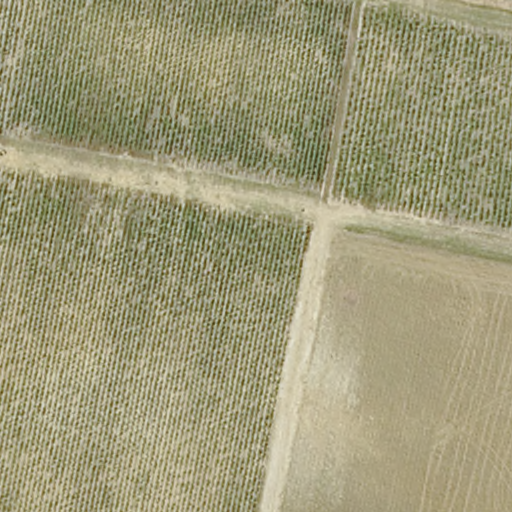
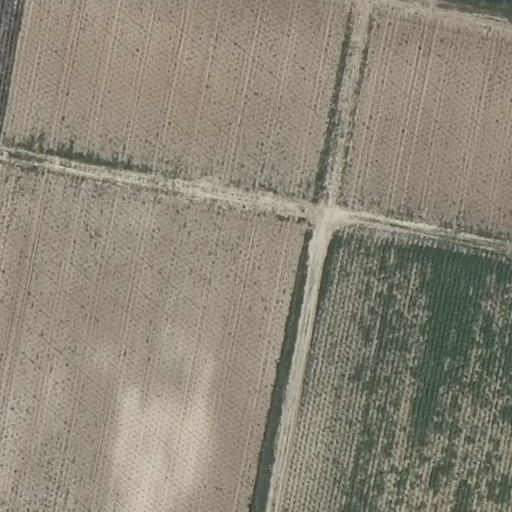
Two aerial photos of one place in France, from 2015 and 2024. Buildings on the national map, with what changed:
[]

